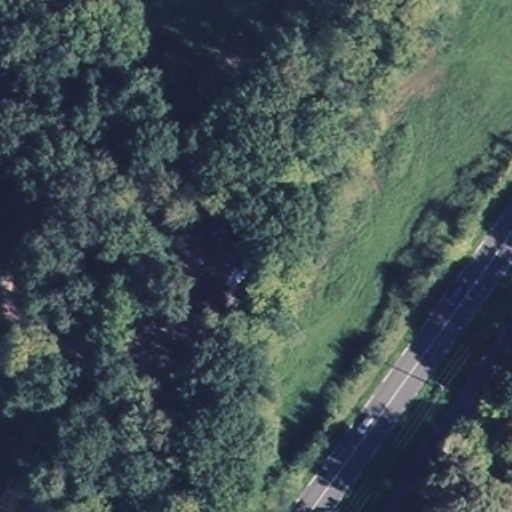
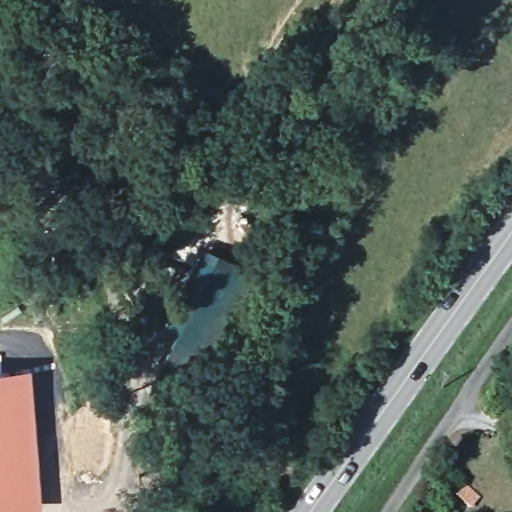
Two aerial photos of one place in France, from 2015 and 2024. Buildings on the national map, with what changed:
new [(1,370),(30,367),(41,510),(9,512),(0,512),(0,356),(1,356),(1,370)]

